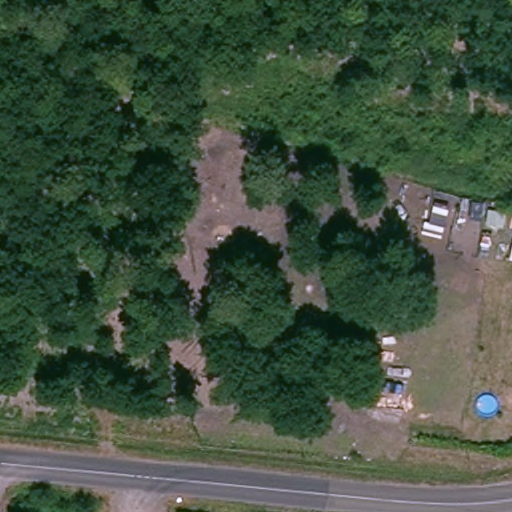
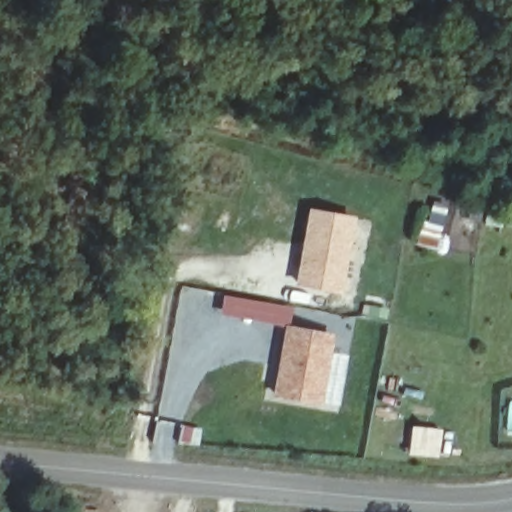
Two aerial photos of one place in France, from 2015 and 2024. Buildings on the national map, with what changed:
new [(296,286),(308,210),(356,217),(343,295),(296,286)]
new [(273,396),(285,327),(335,334),(320,406),(273,396)]

